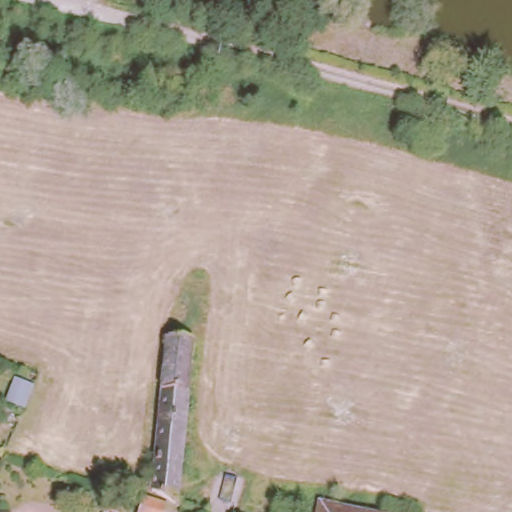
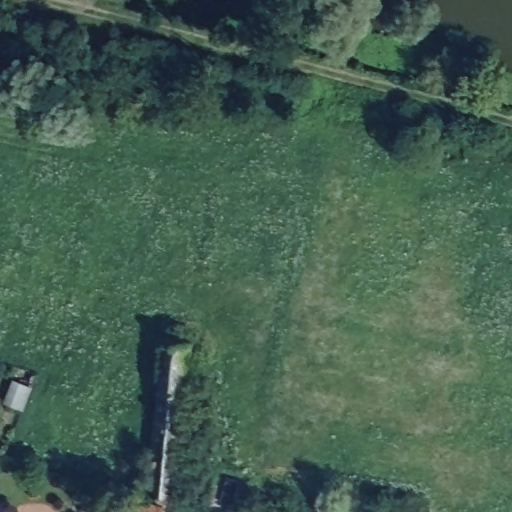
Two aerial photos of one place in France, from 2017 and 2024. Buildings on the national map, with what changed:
unchanged [(189,497),(181,494),(155,484),(155,482),(144,482),(145,467),(157,470),(174,331),(180,331),(199,334),(197,347),(193,383),(182,486),(190,487),(189,497)]
unchanged [(170,498),(165,512),(140,512),(147,491),(170,498)]
unchanged [(316,512),(320,497),(389,512),(316,512)]
unchanged [(295,512),(271,512),(272,506),(295,512)]

